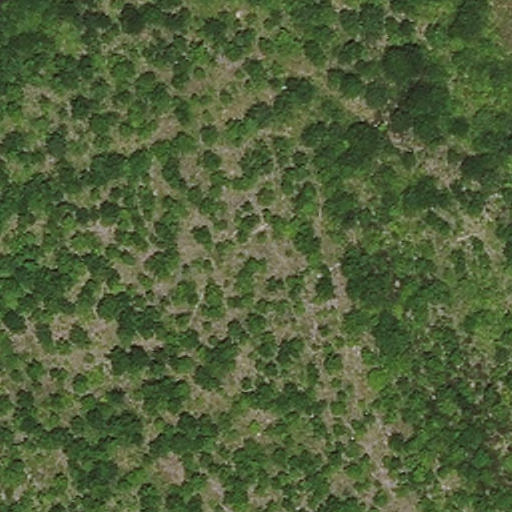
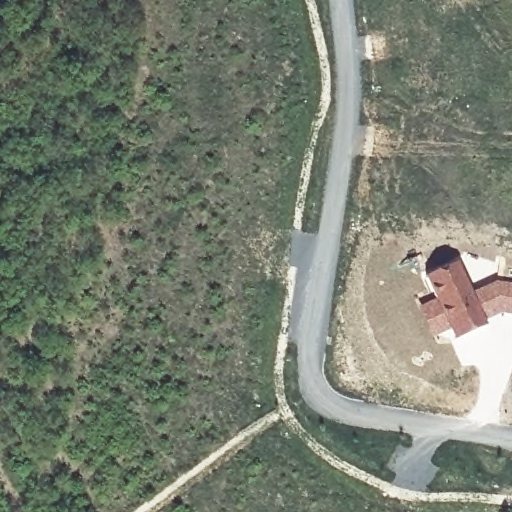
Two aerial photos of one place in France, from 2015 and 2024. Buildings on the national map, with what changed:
new [(425,275),(459,257),(473,290),(487,320),(488,323),(453,339),(449,330),(432,337),(417,306),(435,297),(425,275)]
new [(497,279),(512,282),(512,314),(503,312),(487,320),(473,290),(497,279)]

